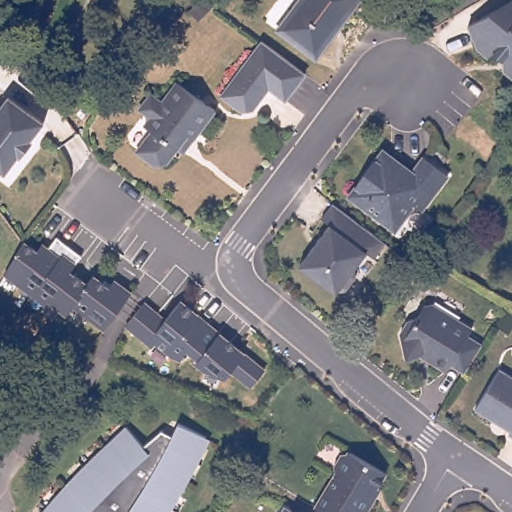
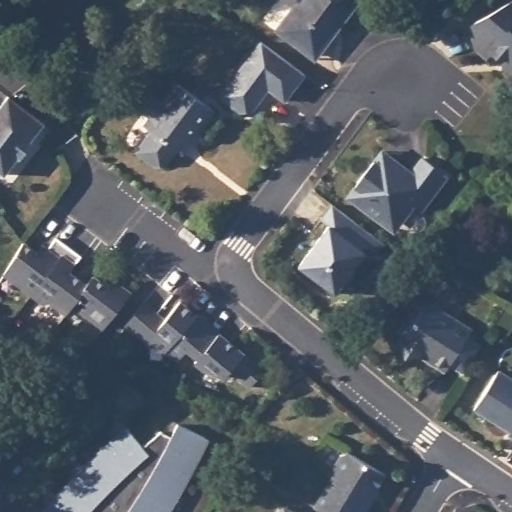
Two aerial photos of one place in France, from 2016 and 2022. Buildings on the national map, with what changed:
unchanged [(316,54),(301,43),(298,47),(275,30),(298,0),(356,0),(316,54)]
unchanged [(512,73),(507,69),(506,59),(495,50),(490,56),(479,47),(471,23),(511,0),(512,0),(512,73)]
unchanged [(249,108),(237,110),(217,95),(259,40),(301,72),(281,99),(264,87),(259,95),(249,108)]
unchanged [(178,148),(168,162),(156,164),(138,151),(154,130),(146,124),(152,116),(141,107),(152,92),(164,101),(178,81),(217,110),(195,139),(184,153),(178,148)]
unchanged [(10,92),(45,118),(32,136),(33,137),(21,153),(20,152),(6,170),(0,165),(0,105),(10,92)]
unchanged [(386,217),(366,202),(352,191),(359,181),(379,155),(386,145),(390,147),(403,158),(416,167),(427,152),(451,170),(425,205),(417,199),(406,214),(397,225),(386,217)]
unchanged [(371,257),(363,251),(351,267),(353,275),(342,289),(334,290),(333,292),(296,265),(327,224),(319,218),(330,203),(382,242),(371,257)]
unchanged [(103,331),(74,308),(65,318),(49,305),(46,308),(1,276),(24,242),(37,251),(42,248),(56,257),(62,256),(75,265),(68,275),(84,287),(95,275),(107,285),(115,281),(131,294),(103,331)]
unchanged [(467,369),(452,360),(448,367),(433,355),(432,357),(424,350),(408,354),(402,329),(410,316),(418,314),(426,301),(433,300),(474,325),(469,332),(484,341),(467,369)]
unchanged [(248,391),(227,373),(222,379),(201,372),(185,357),(179,364),(174,362),(156,346),(151,352),(125,329),(144,303),(165,320),(180,304),(265,372),(248,391)]
unchanged [(497,370),(512,379),(512,438),(506,435),(507,431),(472,409),(497,370)]
unchanged [(57,500),(67,488),(80,474),(85,469),(96,459),(105,451),(122,437),(125,434),(132,429),(149,448),(162,436),(167,431),(178,437),(184,424),(212,437),(216,439),(212,447),(203,465),(183,501),(176,512),(47,512),(49,508),(57,500)]
unchanged [(365,512),(322,512),(312,507),(333,471),(332,465),(339,454),(344,453),(345,451),(384,473),(375,488),(378,490),(372,500),(365,512)]
unchanged [(284,512),(287,506),(298,512),(284,512)]

